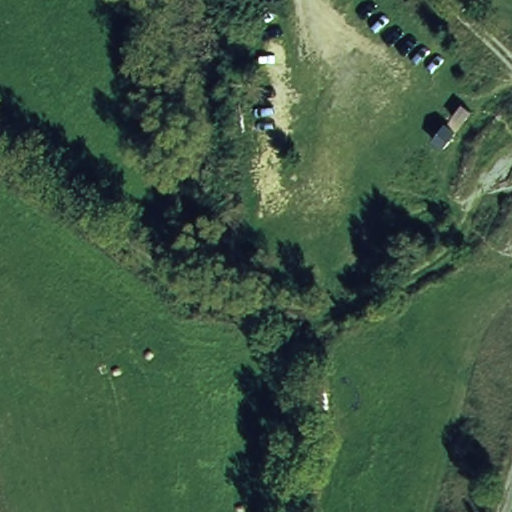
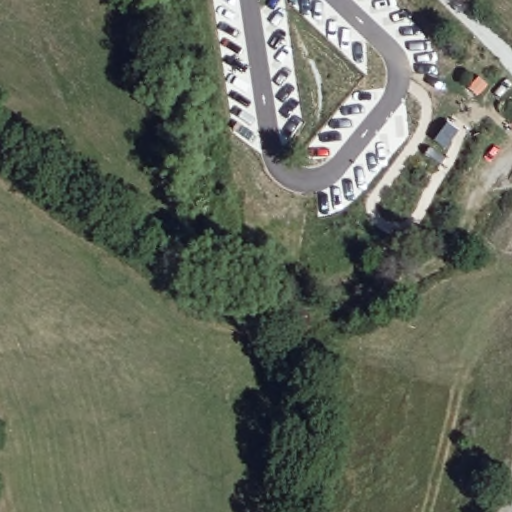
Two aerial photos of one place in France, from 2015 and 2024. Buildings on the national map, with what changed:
unchanged [(436,137),(449,118),(466,128),(452,152),(436,137)]

